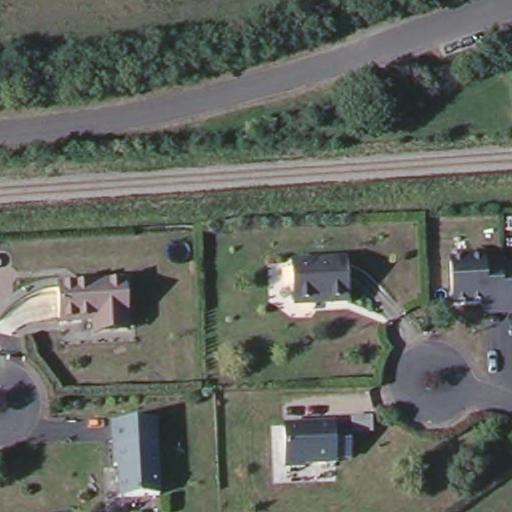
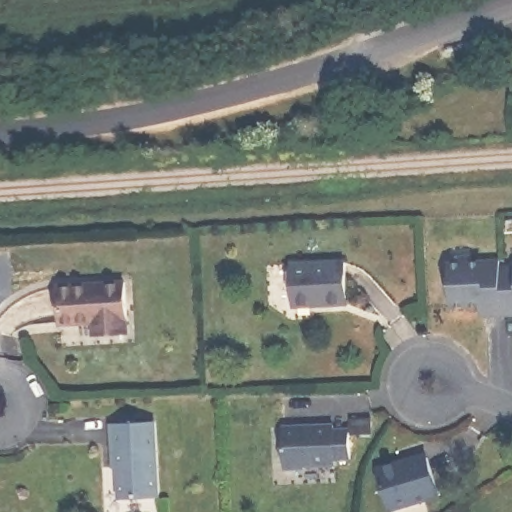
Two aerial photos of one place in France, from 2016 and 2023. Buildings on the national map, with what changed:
unchanged [(501,314),(480,315),(480,304),(448,306),(446,260),(496,257),(496,263),(512,263),(512,303),(500,303),(501,314)]
unchanged [(351,307),(299,309),(297,267),(349,265),(351,307)]
unchanged [(121,281),(124,327),(90,330),(90,323),(56,324),(54,285),(121,281)]
unchanged [(161,421),(164,494),(127,496),(125,467),(120,467),(119,423),(161,421)]
unchanged [(337,424),(336,429),(351,429),(351,459),(337,459),(337,464),(305,464),(305,467),(287,467),(287,424),(337,424)]
new [(433,449),(444,494),(390,509),(378,464),(433,449)]

